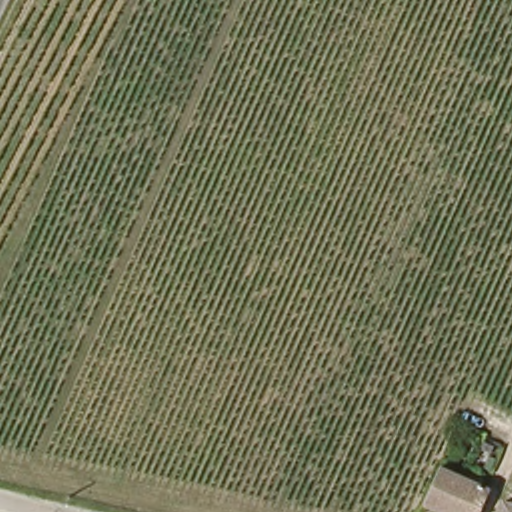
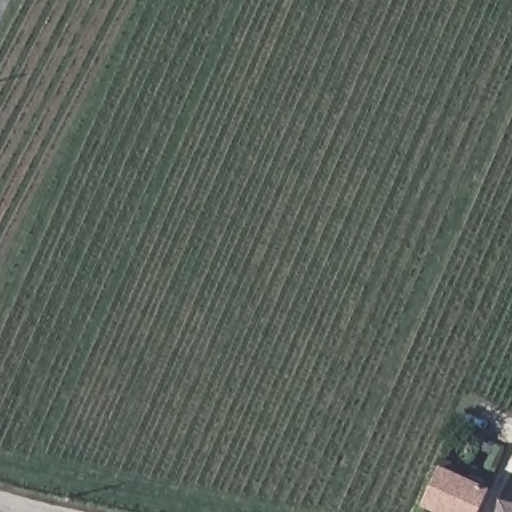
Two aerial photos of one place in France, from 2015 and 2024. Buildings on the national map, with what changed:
unchanged [(488,493),(480,512),(435,512),(423,506),(439,470),(488,493)]
unchanged [(512,506),(512,512),(495,512),(498,502),(512,506)]

